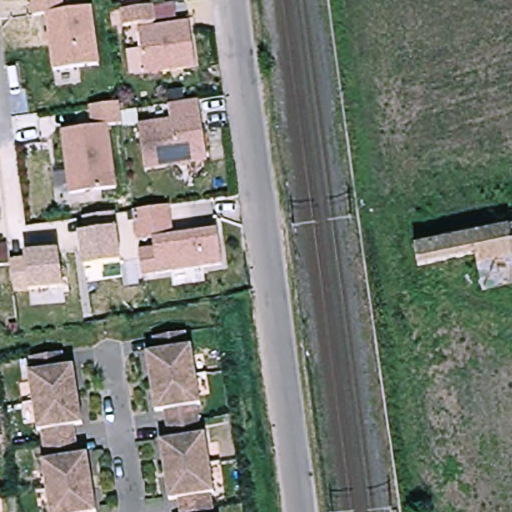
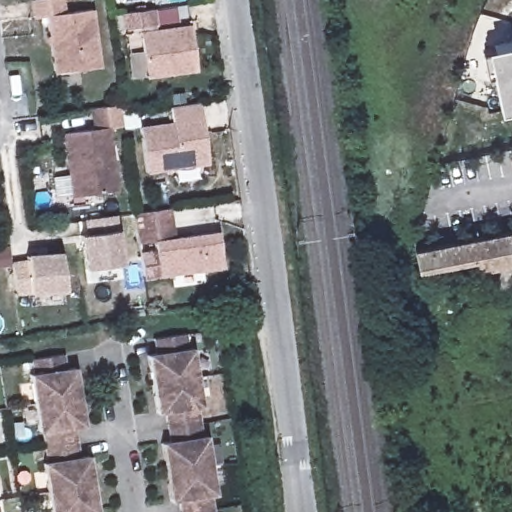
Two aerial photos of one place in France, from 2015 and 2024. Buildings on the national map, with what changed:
unchanged [(93,9),(100,66),(55,73),(48,16),(35,18),(33,0),(64,0),(65,13),(93,9)]
unchanged [(158,8),(160,24),(130,29),(128,12),(158,8)]
unchanged [(145,33),(196,27),(201,71),(150,78),(145,33)]
new [(502,108),(488,46),(512,41),(512,106),(502,108)]
unchanged [(172,123),(170,106),(200,102),(208,164),(145,172),(140,127),(172,123)]
unchanged [(121,105),(122,113),(124,126),(109,128),(117,190),(72,196),(64,133),(93,129),(91,109),(121,105)]
unchanged [(173,281),(172,274),(157,275),(145,277),(142,259),(141,252),(155,251),(153,241),(140,243),(135,213),(170,208),(175,238),(217,232),(222,267),(202,270),(203,277),(173,281)]
unchanged [(94,218),(116,215),(122,264),(87,269),(82,235),(88,234),(86,219),(94,218)]
unchanged [(487,295),(480,256),(426,266),(422,249),(512,231),(512,290),(487,295)]
unchanged [(27,263),(27,257),(60,253),(65,289),(17,295),(15,283),(12,265),(27,263)]
unchanged [(150,362),(160,361),(157,344),(190,339),(192,355),(197,354),(200,379),(155,386),(150,362)]
unchanged [(32,379),(37,378),(35,363),(67,358),(69,373),(77,371),(82,401),(37,409),(32,379)]
unchanged [(168,416),(159,418),(155,386),(200,379),(205,411),(201,412),(203,427),(171,432),(168,416)]
unchanged [(46,436),(42,436),(37,409),(82,401),(87,430),(78,431),(81,447),(48,452),(46,436)]
unchanged [(205,443),(210,442),(213,470),(167,477),(163,449),(173,447),(171,432),(203,427),(205,443)]
unchanged [(83,461),(92,460),(96,488),(51,495),(47,467),(50,467),(48,452),(81,447),(83,461)]
unchanged [(182,505),(172,506),(167,477),(213,470),(217,498),(214,500),(216,512),(183,512),(182,505)]
unchanged [(100,512),(53,512),(51,495),(96,488),(100,512)]

